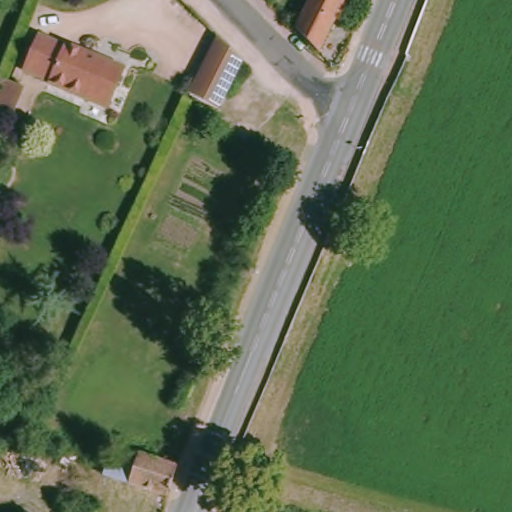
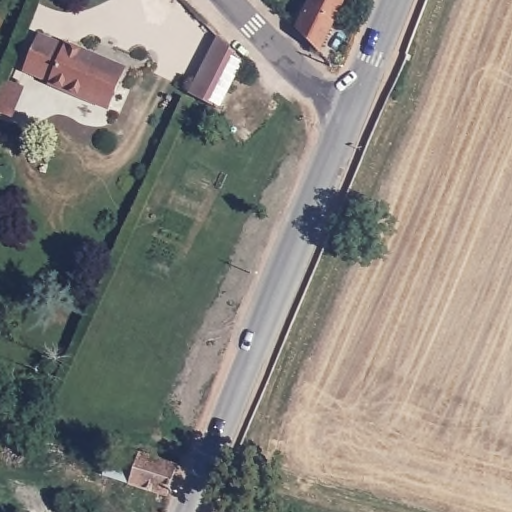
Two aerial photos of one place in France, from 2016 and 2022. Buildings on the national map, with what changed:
unchanged [(321,56),(298,32),(311,0),(344,0),(330,32),(321,56)]
unchanged [(97,102),(38,79),(40,76),(15,65),(29,32),(54,42),(55,40),(115,64),(97,102)]
unchanged [(237,58),(215,108),(185,94),(212,34),(237,58)]
unchanged [(20,88),(9,116),(0,112),(0,97),(6,82),(20,88)]
unchanged [(147,491),(114,479),(125,450),(158,461),(147,491)]

